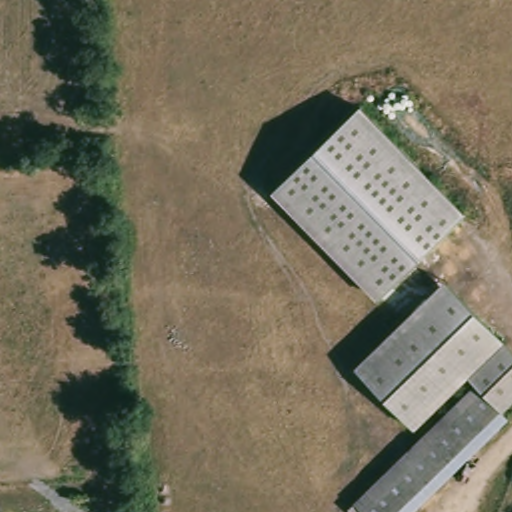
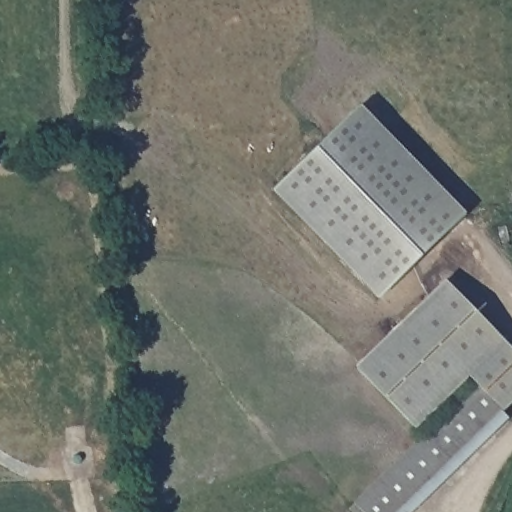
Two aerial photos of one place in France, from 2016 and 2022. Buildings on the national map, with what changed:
unchanged [(469,212),(380,298),(273,186),(362,102),(469,212)]
unchanged [(512,405),(508,409),(512,414),(512,419),(417,512),(355,512),(347,504),(421,431),(357,366),(447,278),(512,343),(512,405)]

